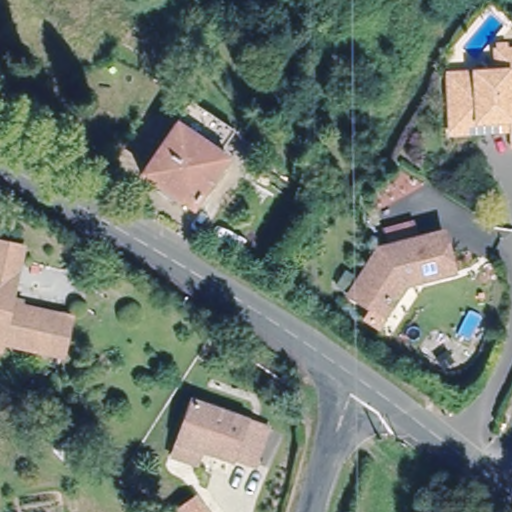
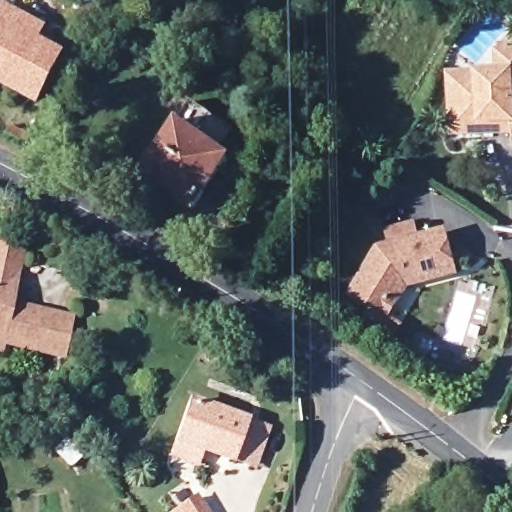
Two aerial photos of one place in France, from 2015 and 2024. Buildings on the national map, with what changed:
new [(0,85),(0,11),(5,2),(48,26),(42,38),(65,51),(38,105),(0,85)]
unchanged [(512,53),(512,127),(493,128),(492,123),(483,124),(484,133),(456,135),(452,87),(452,78),(478,76),(501,74),(500,54),(512,53)]
unchanged [(197,145),(222,163),(186,215),(134,179),(170,126),(172,127),(184,108),(210,126),(197,145)]
unchanged [(370,320),(345,310),(364,260),(380,252),(373,238),(391,230),(397,244),(425,231),(443,270),(398,291),(393,307),(386,326),(370,320)]
unchanged [(24,257),(11,309),(22,311),(20,316),(48,323),(71,329),(62,368),(38,362),(0,353),(0,252),(24,257)]
unchanged [(169,449),(174,435),(187,397),(262,420),(252,456),(230,449),(229,454),(195,442),(190,456),(169,449)]
unchanged [(366,447),(364,438),(380,434),(382,443),(366,447)]
demolished [(70,468),(57,455),(70,442),(83,456),(70,468)]
unchanged [(205,512),(173,512),(194,497),(205,512)]

